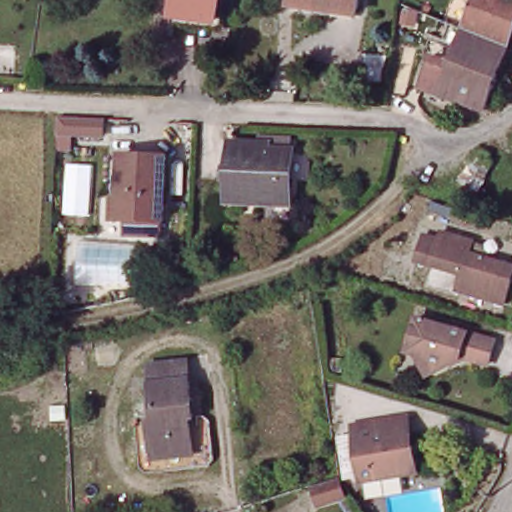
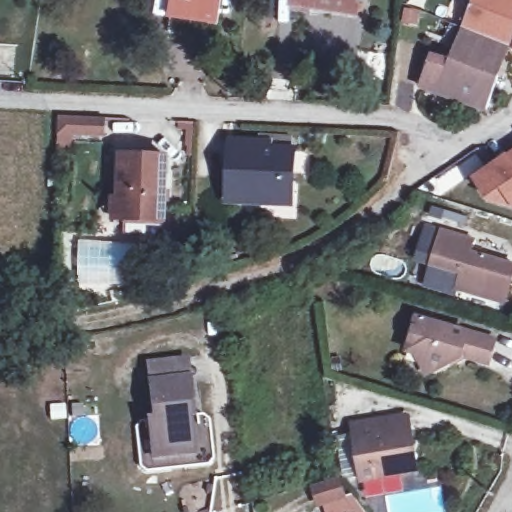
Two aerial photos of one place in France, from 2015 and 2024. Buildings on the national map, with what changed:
unchanged [(186,18),(168,14),(172,0),(219,0),(216,15),(214,23),(186,18)]
unchanged [(339,12),(291,3),(291,0),(362,0),(361,9),(359,16),(339,12)]
unchanged [(475,0),(511,0),(512,0),(512,45),(506,61),(491,55),(458,41),(475,0)]
unchanged [(485,117),(436,100),(419,94),(428,68),(445,74),(458,41),(491,55),(506,61),(485,117)]
unchanged [(102,114),(101,130),(56,127),(56,111),(102,114)]
unchanged [(259,203),(222,200),(226,143),(262,146),(261,151),(289,153),(288,181),(286,205),(259,203)]
new [(512,149),(512,207),(489,204),(471,177),(512,149)]
unchanged [(113,173),(119,174),(120,153),(166,157),(163,223),(123,220),(108,219),(113,173)]
unchanged [(462,278),(413,263),(422,237),(437,242),(440,233),(474,244),(469,256),(512,269),(512,286),(505,308),(457,293),(462,278)]
unchanged [(414,353),(407,351),(416,319),(494,341),(487,366),(462,360),(439,370),(425,377),(414,353)]
unchanged [(208,415),(216,428),(218,462),(209,473),(148,475),(134,470),(134,428),(143,418),(156,418),(156,381),(156,359),(191,357),(191,379),(193,415),(208,415)]
unchanged [(402,476),(361,482),(351,423),(379,419),(405,415),(408,433),(413,432),(415,447),(419,473),(402,476)]
unchanged [(344,502),(318,509),(313,485),(338,478),(344,502)]

